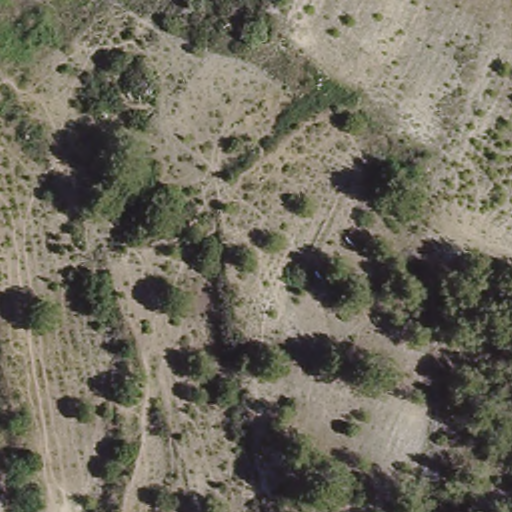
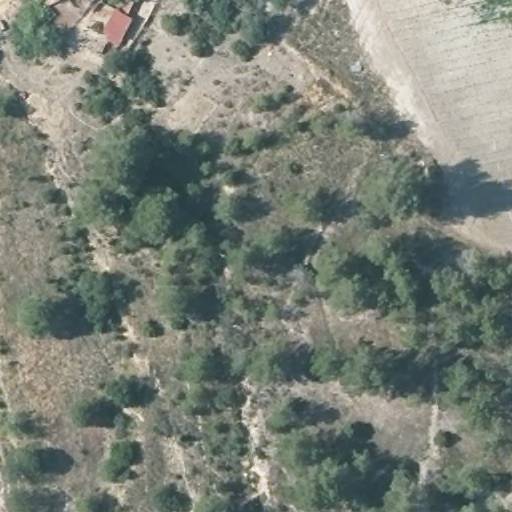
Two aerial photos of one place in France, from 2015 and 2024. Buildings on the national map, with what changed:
[]

